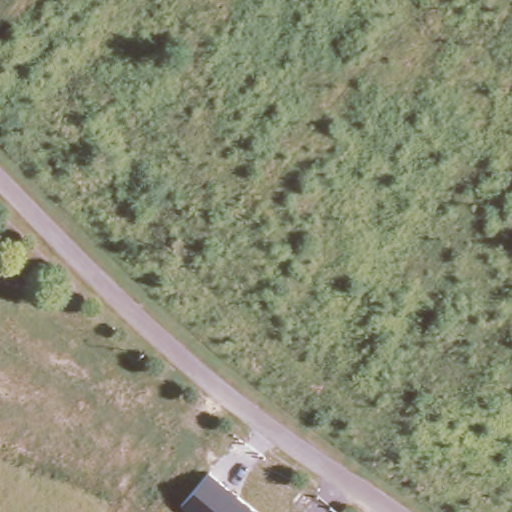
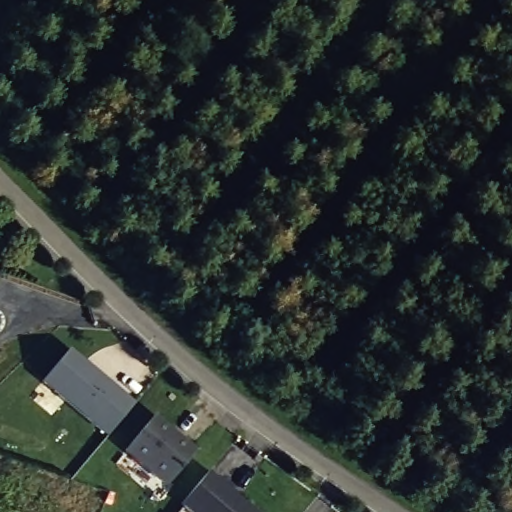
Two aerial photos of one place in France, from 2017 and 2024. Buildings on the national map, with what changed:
new [(106,438),(40,383),(66,351),(132,405),(106,438)]
new [(151,419),(193,454),(165,488),(123,453),(151,419)]
unchanged [(190,512),(181,504),(210,470),(259,512),(190,512)]

